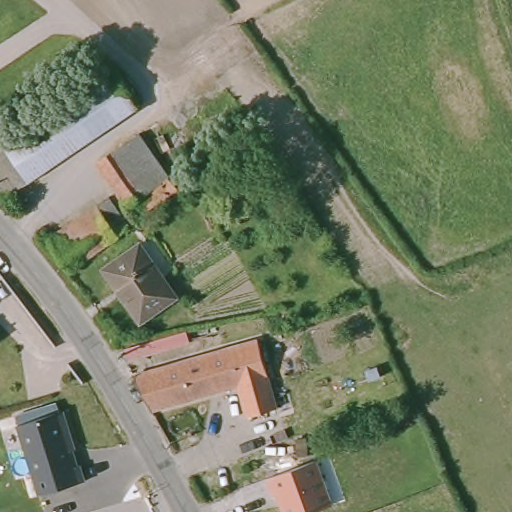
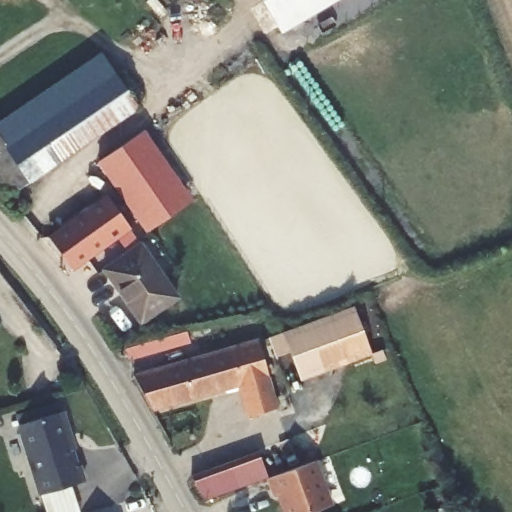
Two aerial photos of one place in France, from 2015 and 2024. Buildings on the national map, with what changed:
new [(261,0),(339,0),(281,34),(261,0)]
unchanged [(0,197),(0,140),(8,152),(115,80),(139,112),(29,187),(28,187),(4,203),(0,197)]
unchanged [(140,134),(177,190),(137,217),(98,162),(99,162),(140,134)]
unchanged [(108,197),(130,227),(71,268),(50,237),(108,197)]
unchanged [(140,245),(176,297),(141,321),(105,270),(140,245)]
new [(352,306),(370,352),(299,380),(288,352),(275,357),(267,338),(352,306)]
unchanged [(135,371),(257,336),(276,403),(247,412),(240,380),(153,405),(135,371)]
unchanged [(168,347),(128,359),(125,349),(165,337),(168,347)]
unchanged [(61,414),(78,468),(80,467),(85,483),(41,497),(20,427),(61,414)]
demolished [(297,439),(306,438),(307,448),(297,448),(297,439)]
new [(253,458),(262,481),(200,504),(187,480),(253,458)]
unchanged [(315,460),(332,506),(314,512),(281,512),(267,477),(315,460)]

